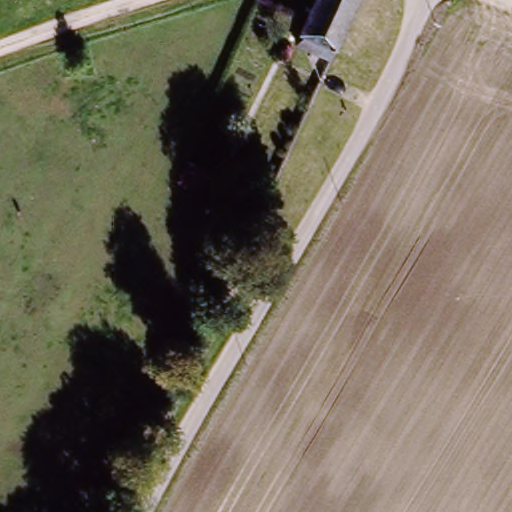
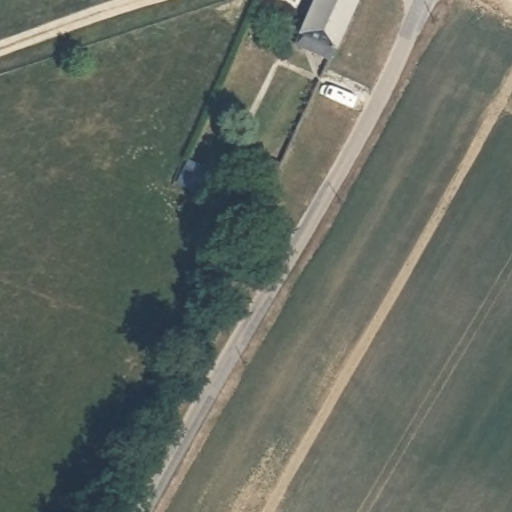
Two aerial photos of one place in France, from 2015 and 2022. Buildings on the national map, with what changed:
unchanged [(297,38),(313,0),(362,0),(358,8),(348,30),(337,56),(297,38)]

